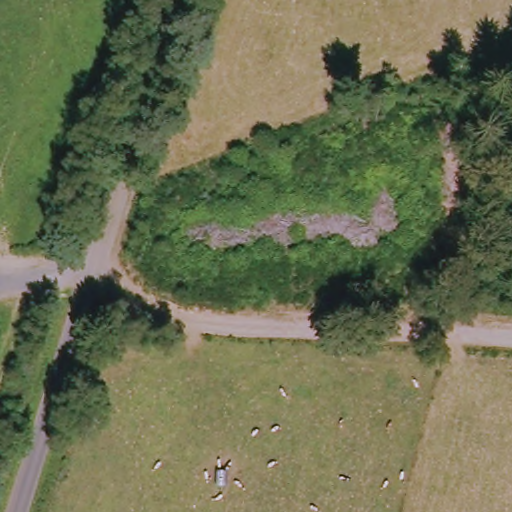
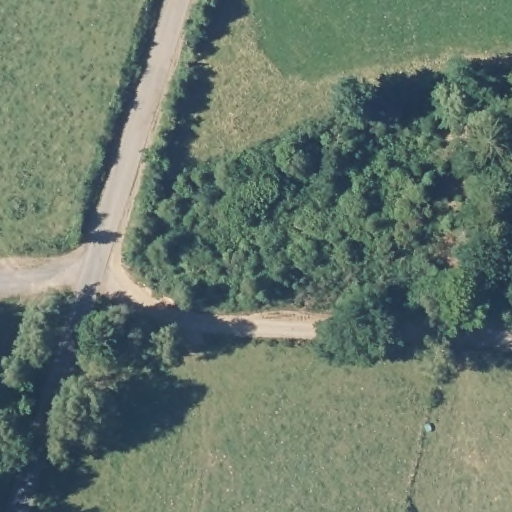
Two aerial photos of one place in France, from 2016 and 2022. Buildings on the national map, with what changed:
[]

